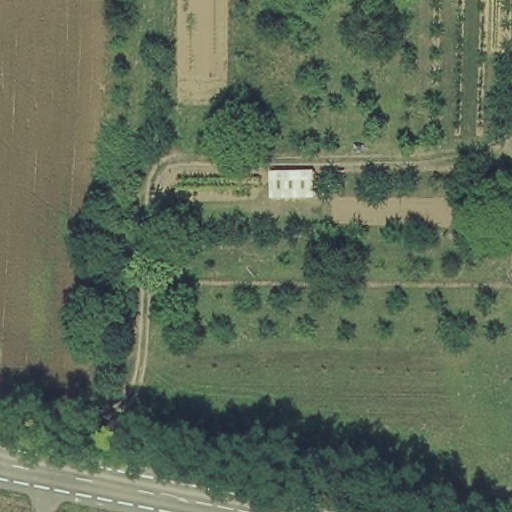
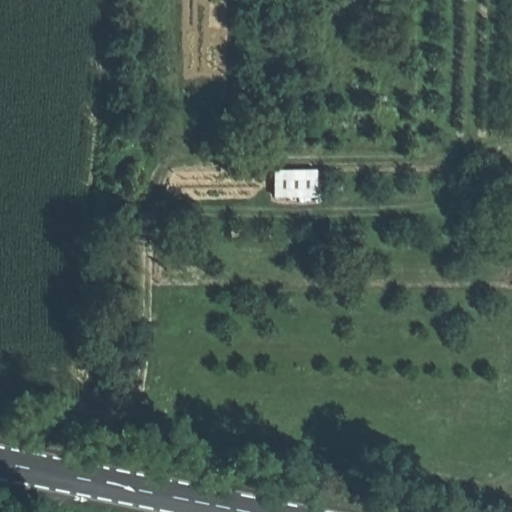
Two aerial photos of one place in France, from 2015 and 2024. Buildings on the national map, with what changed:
unchanged [(282,193),(284,171),(304,168),(306,192),(282,193)]

